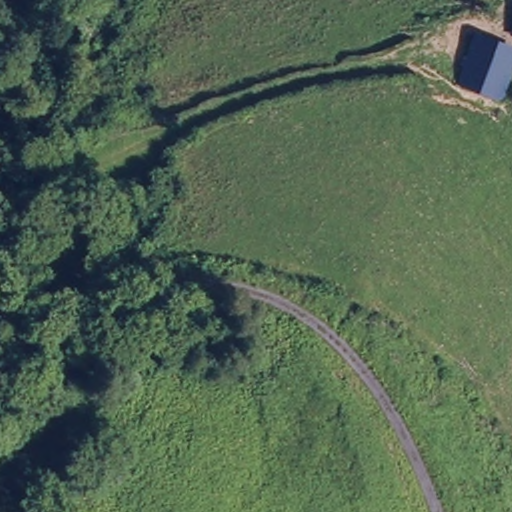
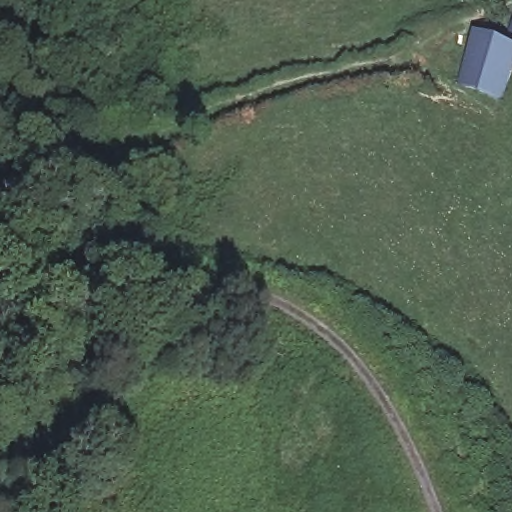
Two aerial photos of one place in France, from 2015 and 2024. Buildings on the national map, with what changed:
unchanged [(512,42),(512,96),(512,97),(469,83),(486,31),(512,42)]

